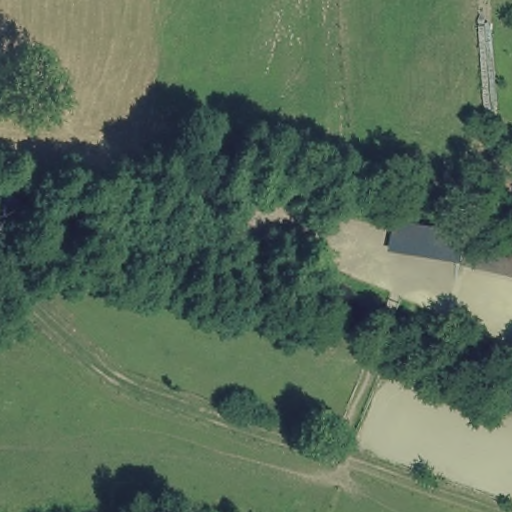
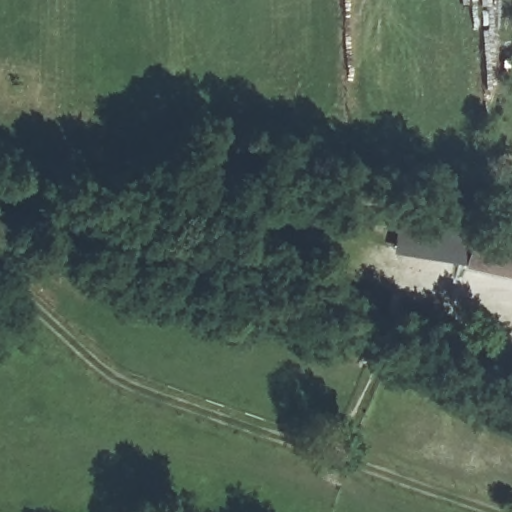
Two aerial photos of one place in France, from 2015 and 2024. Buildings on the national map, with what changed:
unchanged [(458,265),(464,230),(512,240),(512,275),(458,265)]

